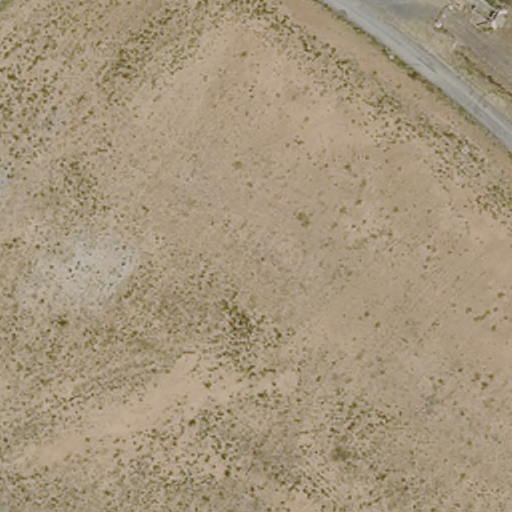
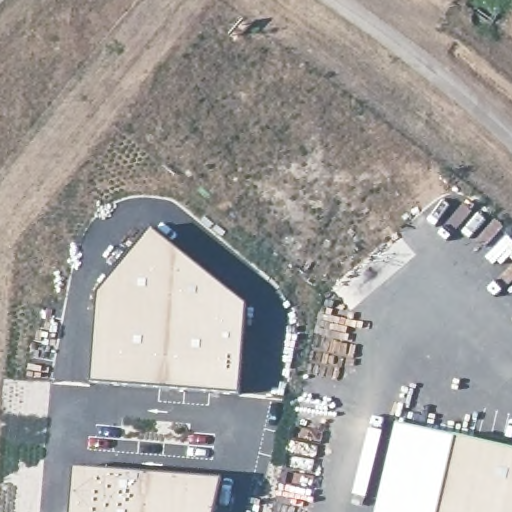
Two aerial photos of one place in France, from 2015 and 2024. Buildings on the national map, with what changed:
new [(92,383),(98,294),(146,224),(247,305),(240,391),(92,383)]
new [(397,424),(512,451),(512,512),(377,512),(397,424)]
new [(209,512),(62,512),(65,459),(218,472),(209,512)]

